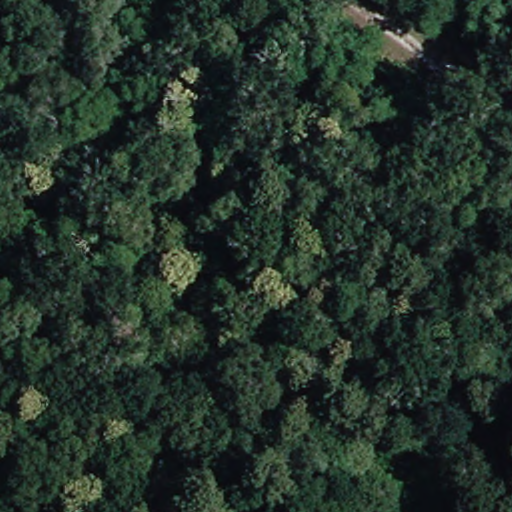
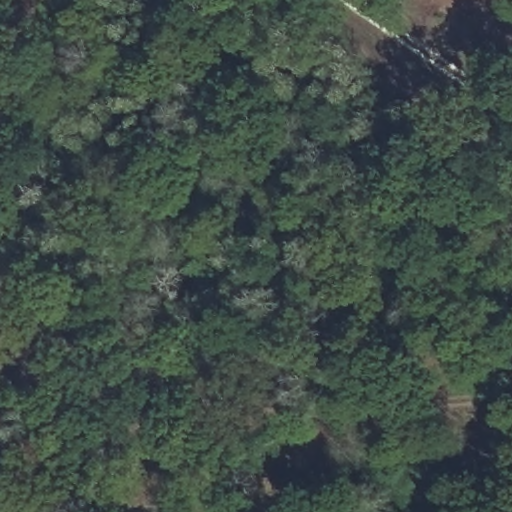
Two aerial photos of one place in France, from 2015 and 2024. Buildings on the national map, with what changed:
unchanged [(399,512),(400,503),(427,504),(427,512),(399,512)]

